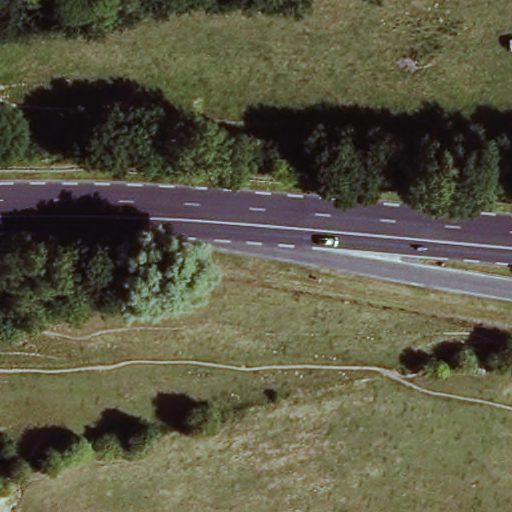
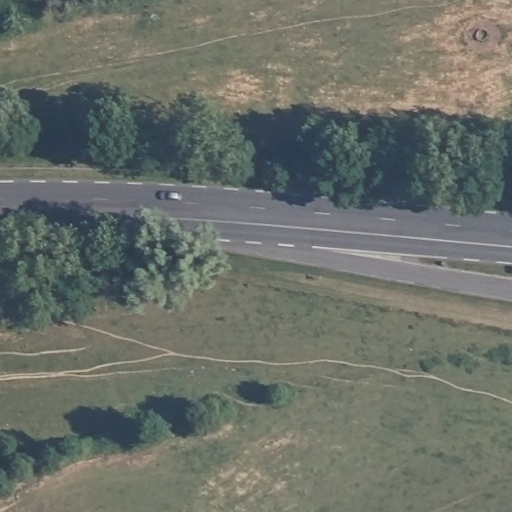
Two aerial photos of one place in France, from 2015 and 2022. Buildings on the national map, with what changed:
[]

